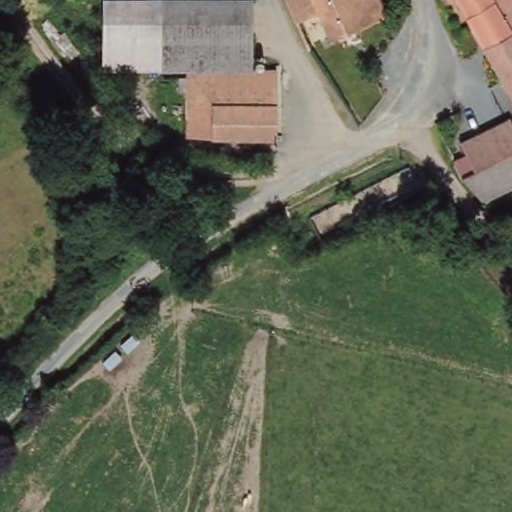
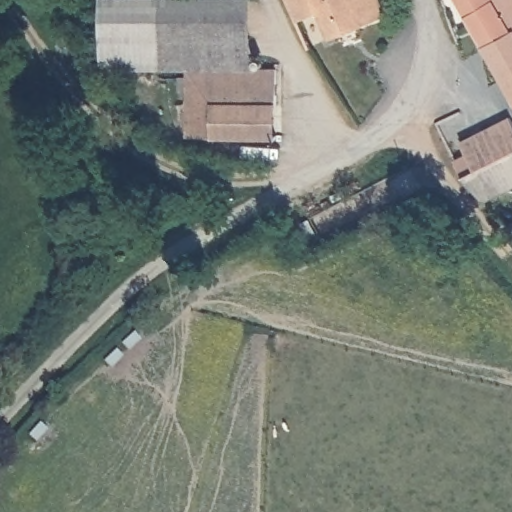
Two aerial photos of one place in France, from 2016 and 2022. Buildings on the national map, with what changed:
unchanged [(162,68),(102,67),(102,0),(165,0),(162,68)]
unchanged [(253,1),(252,71),(187,69),(162,68),(165,0),(246,0),(253,1)]
unchanged [(392,14),(338,40),(325,12),(300,22),(289,0),(384,0),(392,14)]
unchanged [(512,86),(462,0),(512,0),(512,86)]
unchanged [(252,71),(275,72),(274,107),(187,104),(187,69),(252,71)]
unchanged [(274,107),(273,141),(187,137),(187,104),(274,107)]
unchanged [(512,122),(512,154),(508,156),(512,163),(512,186),(478,200),(454,163),(453,161),(468,154),(464,145),(512,122)]

